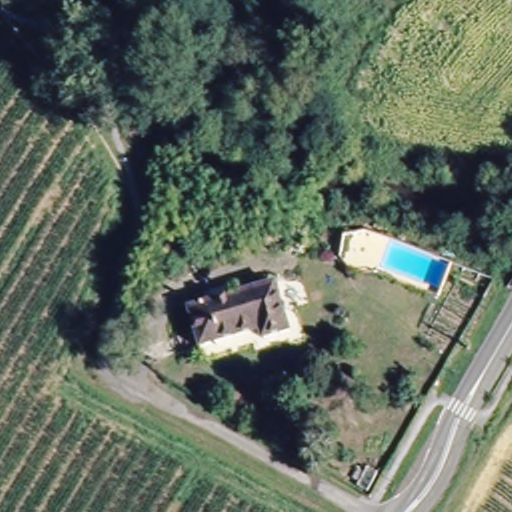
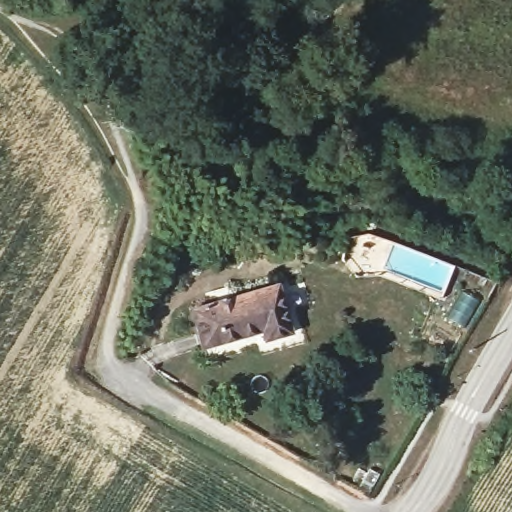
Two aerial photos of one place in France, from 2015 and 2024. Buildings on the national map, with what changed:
unchanged [(249,343),(247,332),(196,348),(184,306),(272,280),(289,330),(249,343)]

